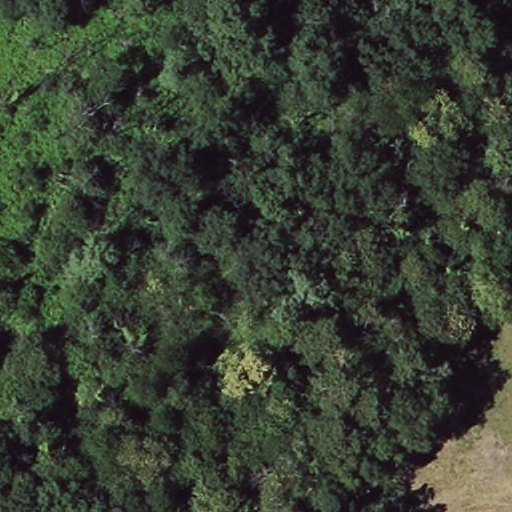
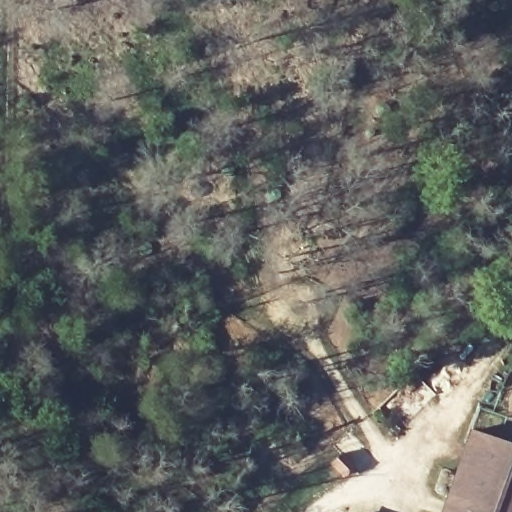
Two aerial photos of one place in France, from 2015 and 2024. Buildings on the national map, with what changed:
new [(512,445),(512,512),(439,512),(468,429),(512,445)]

